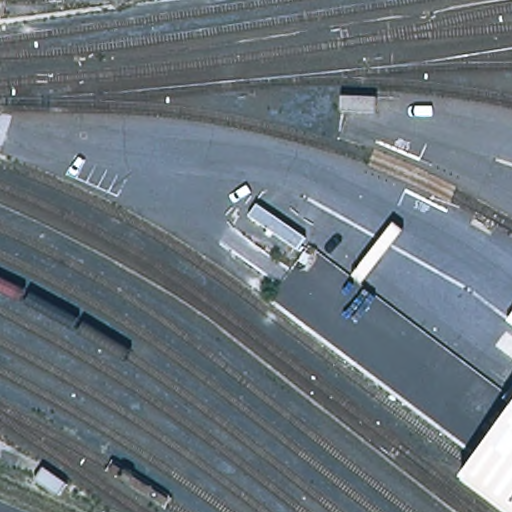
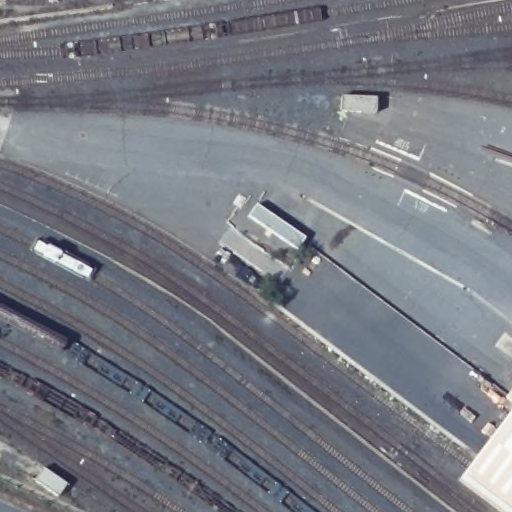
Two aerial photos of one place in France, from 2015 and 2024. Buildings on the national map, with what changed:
unchanged [(512,409),(512,512),(506,512),(461,477),(512,409)]
unchanged [(45,467),(72,482),(59,502),(30,480),(45,467)]

